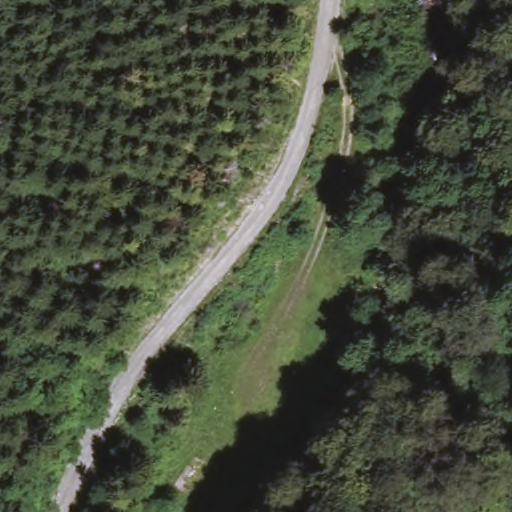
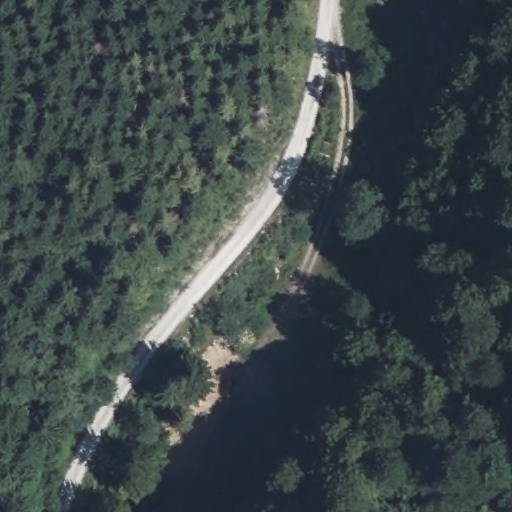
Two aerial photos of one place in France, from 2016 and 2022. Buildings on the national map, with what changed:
unchanged [(173,485),(187,463),(200,472),(192,481),(184,492),(173,485)]

